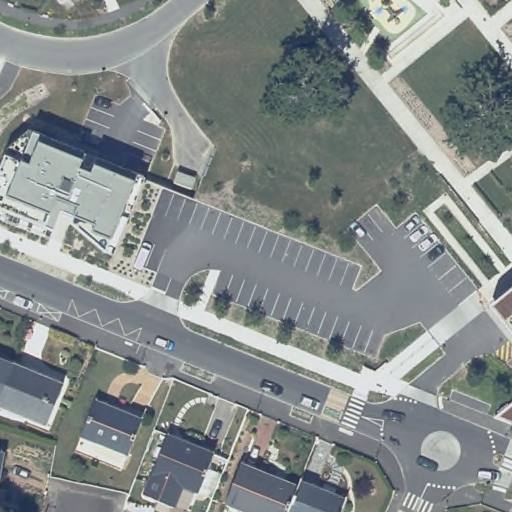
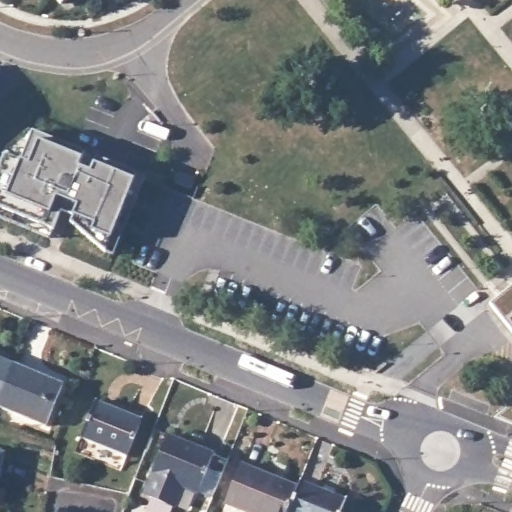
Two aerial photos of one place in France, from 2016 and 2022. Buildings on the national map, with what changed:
unchanged [(58,0),(63,0),(60,3),(58,0)]
unchanged [(4,154),(8,147),(27,129),(31,131),(39,134),(38,136),(84,154),(82,159),(79,168),(90,172),(94,164),(96,159),(144,178),(113,254),(104,249),(73,222),(74,217),(60,210),(52,229),(49,238),(0,217),(0,164),(4,154)]
unchanged [(512,336),(489,308),(512,289),(512,336)]
unchanged [(0,405),(0,357),(21,366),(4,406),(0,405)]
unchanged [(4,406),(21,366),(71,387),(55,427),(4,406)]
unchanged [(84,434),(99,397),(145,416),(130,453),(84,434)]
unchanged [(512,405),(512,427),(493,420),(512,405)]
unchanged [(186,488),(177,509),(146,497),(171,436),(216,455),(201,494),(186,488)]
unchanged [(7,453),(0,488),(0,452),(7,453)]
unchanged [(229,505),(245,466),(301,488),(291,512),(246,512),(229,505)]
unchanged [(301,488),(303,483),(350,502),(345,512),(291,512),(301,488)]

